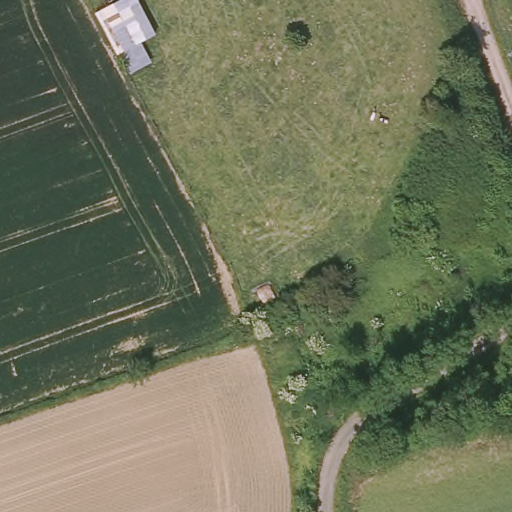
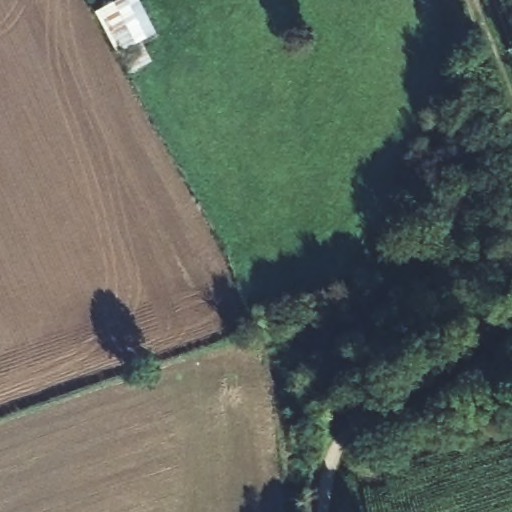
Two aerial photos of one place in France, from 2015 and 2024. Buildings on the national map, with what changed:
unchanged [(159,44),(116,61),(95,16),(132,0),(159,44)]

